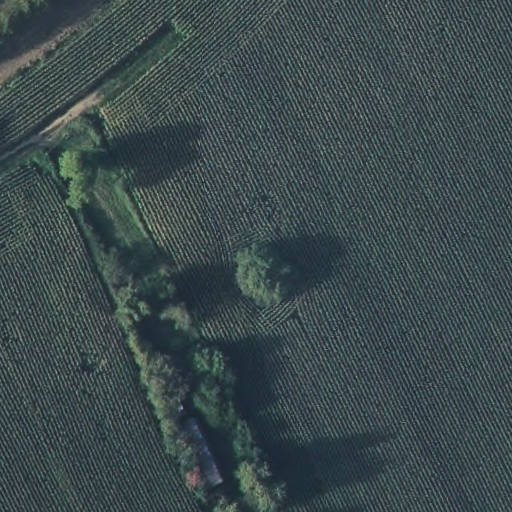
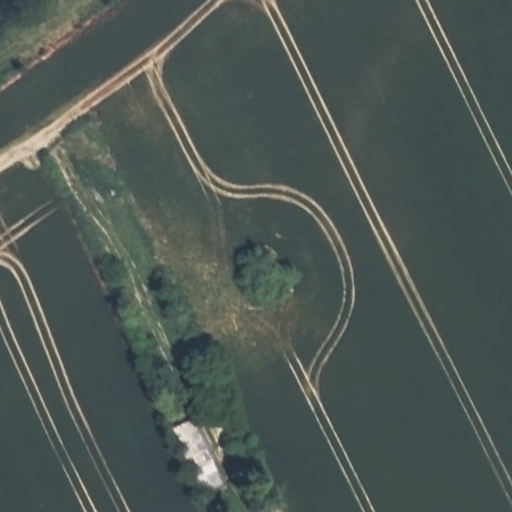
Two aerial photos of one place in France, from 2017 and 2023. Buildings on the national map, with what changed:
unchanged [(230,483),(205,495),(171,425),(195,415),(230,483)]

